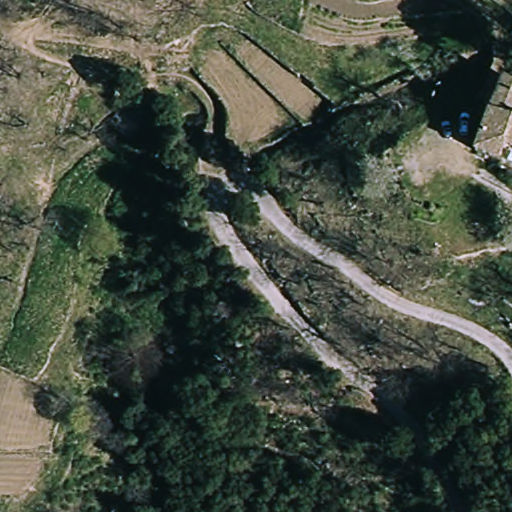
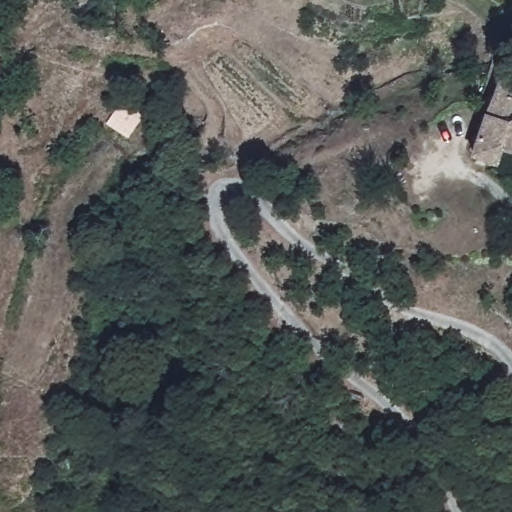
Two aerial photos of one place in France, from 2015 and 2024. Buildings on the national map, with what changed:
unchanged [(505,162),(479,157),(475,156),(491,86),(496,77),(512,82),(512,148),(507,147),(505,162)]

